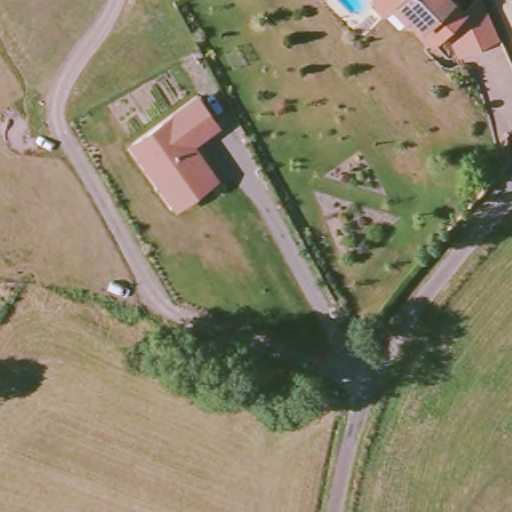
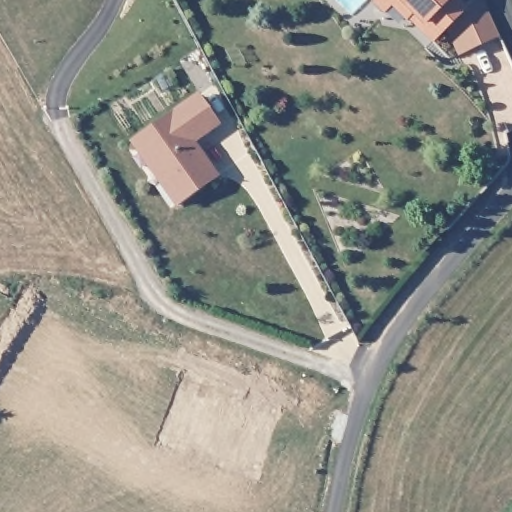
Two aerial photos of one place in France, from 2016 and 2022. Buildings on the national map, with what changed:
unchanged [(439,40),(415,15),(409,19),(395,5),(390,0),(453,0),(465,11),(439,40)]
unchanged [(131,143),(198,94),(221,127),(196,144),(220,178),(177,211),(131,143)]

